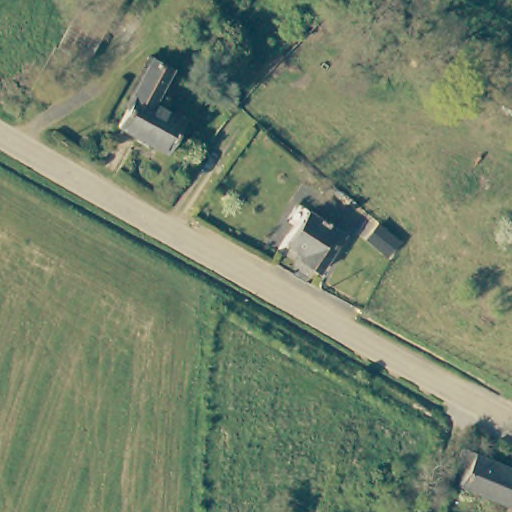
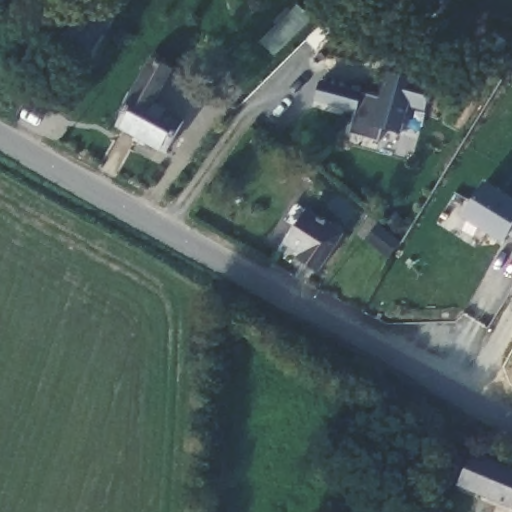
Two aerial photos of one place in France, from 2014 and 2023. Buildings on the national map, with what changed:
unchanged [(97,44),(89,64),(60,52),(70,30),(97,44)]
unchanged [(165,152),(117,128),(137,90),(153,57),(171,65),(156,99),(187,113),(165,152)]
new [(380,97),(387,70),(432,82),(425,111),(410,107),(402,134),(382,129),(380,141),(350,133),(356,112),(315,100),(321,79),(380,97)]
new [(512,235),(510,234),(505,243),(463,218),(485,182),(512,198),(512,235)]
unchanged [(281,255),(290,242),(307,211),(344,231),(324,268),(302,258),(300,264),(281,255)]
unchanged [(409,273),(385,261),(392,245),(417,257),(409,273)]
unchanged [(470,470),(460,465),(467,449),(512,470),(512,511),(462,487),(470,470)]

